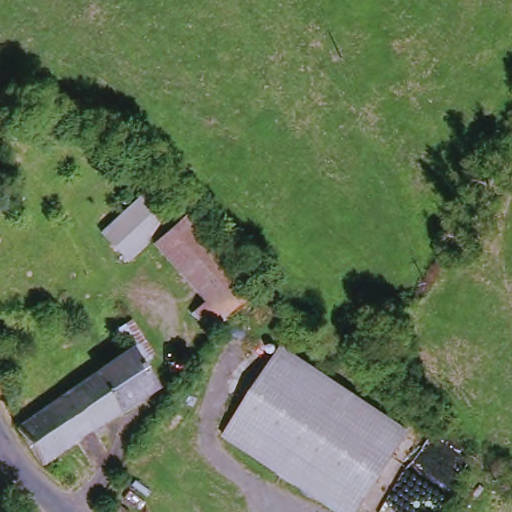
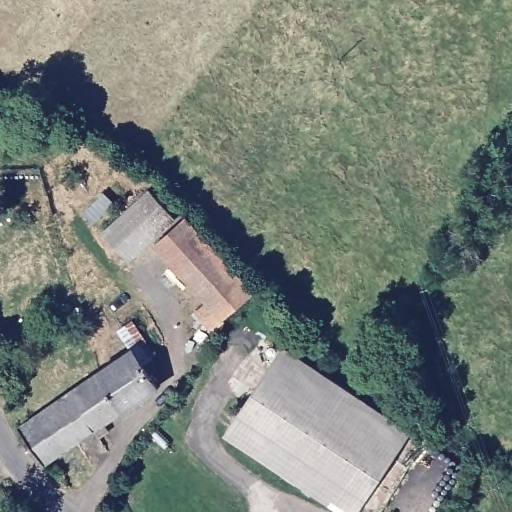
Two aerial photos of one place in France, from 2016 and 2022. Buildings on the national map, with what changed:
unchanged [(171,212),(120,256),(96,227),(147,185),(171,212)]
unchanged [(249,288),(220,313),(222,316),(209,328),(190,308),(201,297),(149,241),(179,211),(249,288)]
unchanged [(106,417),(112,425),(97,435),(92,427),(40,462),(14,426),(95,370),(128,347),(114,327),(126,318),(149,351),(136,359),(153,384),(117,408),(106,417)]
unchanged [(225,438),(281,348),(407,431),(355,512),(339,512),(225,438)]

